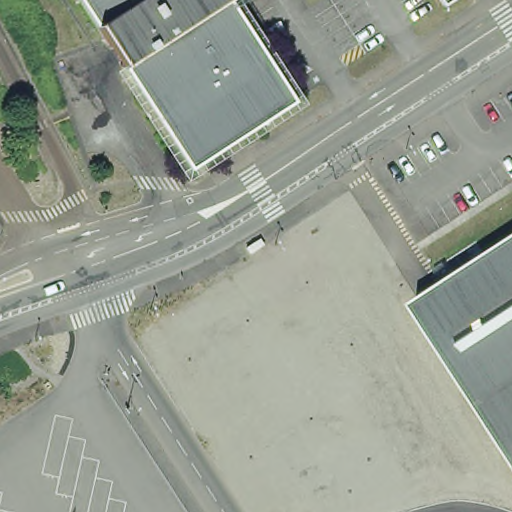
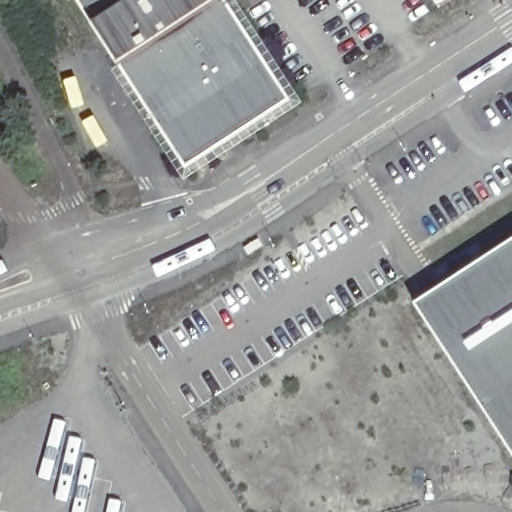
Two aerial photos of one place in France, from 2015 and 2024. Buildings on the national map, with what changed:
unchanged [(108,63),(67,0),(207,0),(108,63)]
unchanged [(126,90),(108,63),(207,0),(217,0),(232,21),(126,90)]
unchanged [(426,6),(423,0),(435,0),(426,6)]
unchanged [(281,97),(173,163),(126,90),(232,21),(281,97)]
unchanged [(421,304),(512,245),(512,446),(421,304)]

